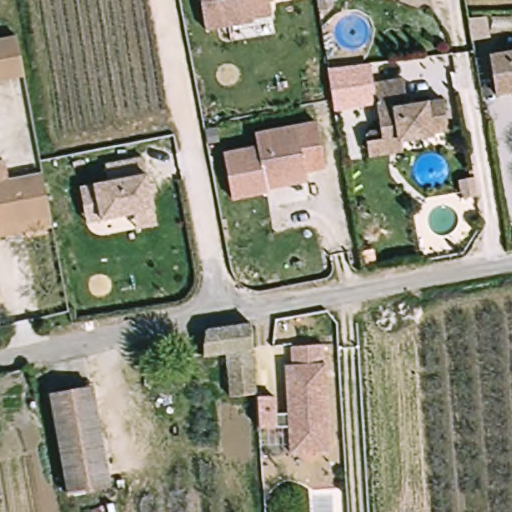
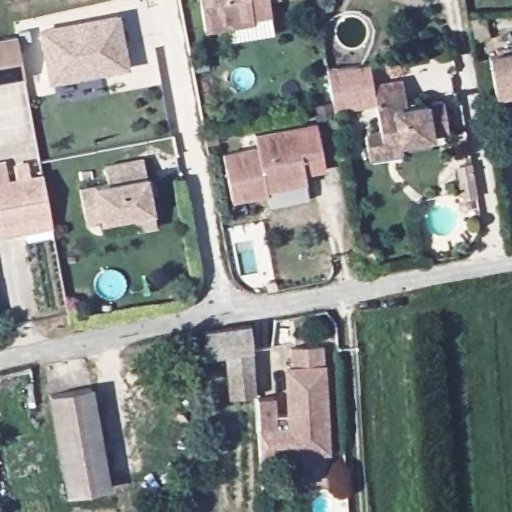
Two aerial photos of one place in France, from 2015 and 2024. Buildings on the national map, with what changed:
unchanged [(252,15),(253,20),(204,27),(200,0),(269,0),(269,3),(271,12),(252,15)]
new [(36,29),(119,12),(129,69),(48,84),(36,29)]
unchanged [(18,40),(23,77),(0,80),(0,42),(18,40)]
unchanged [(491,56),(512,53),(512,93),(496,95),(491,56)]
new [(333,110),(327,70),(368,65),(371,89),(376,89),(379,105),(333,110)]
unchanged [(376,160),(371,160),(369,146),(374,145),(385,143),(376,89),(405,84),(410,110),(446,104),(451,134),(435,136),(435,140),(403,144),(405,155),(376,160)]
unchanged [(265,185),(266,189),(230,195),(223,150),(257,145),(255,131),(318,121),(324,166),(304,169),(305,179),(265,185)]
unchanged [(104,219),(89,221),(86,210),(82,187),(111,181),(107,164),(145,156),(156,208),(159,223),(139,227),(136,212),(104,219)]
unchanged [(56,226),(2,236),(0,228),(0,163),(6,162),(9,177),(46,170),(54,217),(56,226)]
unchanged [(240,325),(256,322),(260,394),(234,395),(231,356),(204,358),(207,331),(240,325)]
unchanged [(278,395),(278,413),(292,412),(290,366),(296,365),(295,345),(327,344),(328,363),(333,450),(294,452),(293,425),(263,428),(261,396),(278,395)]
unchanged [(93,386),(108,485),(69,491),(55,391),(93,386)]

